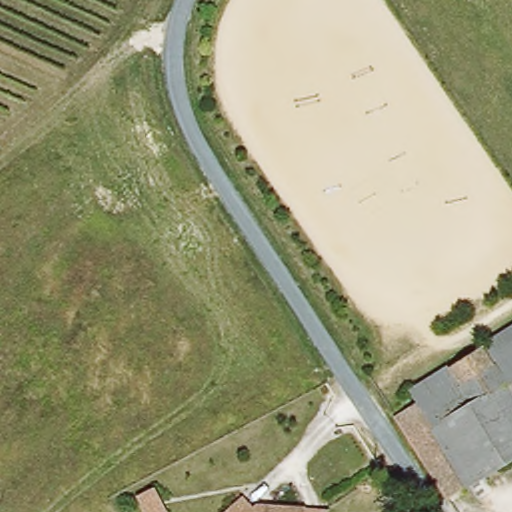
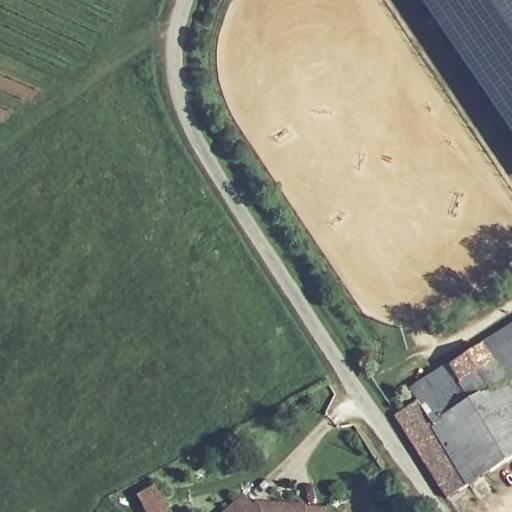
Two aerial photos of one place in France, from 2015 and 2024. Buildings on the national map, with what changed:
new [(440,39),(414,0),(512,0),(512,141),(440,39)]
unchanged [(428,409),(420,397),(455,376),(450,367),(482,348),(487,356),(512,341),(512,384),(506,388),(512,397),(512,459),(450,498),(403,425),(428,409)]
unchanged [(169,512),(147,512),(139,496),(156,488),(169,512)]
unchanged [(253,506),(255,505),(307,507),(330,509),(330,512),(228,512),(245,497),(253,506)]

